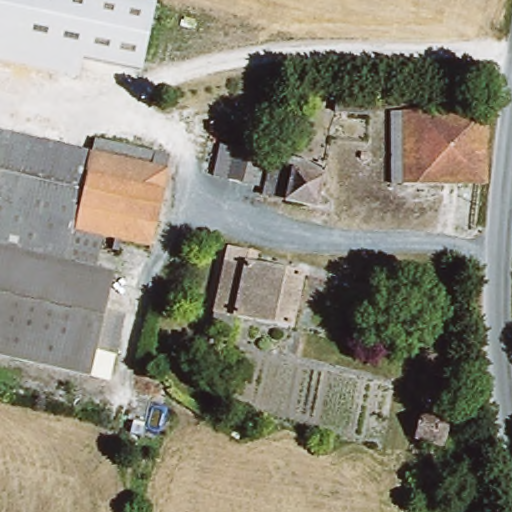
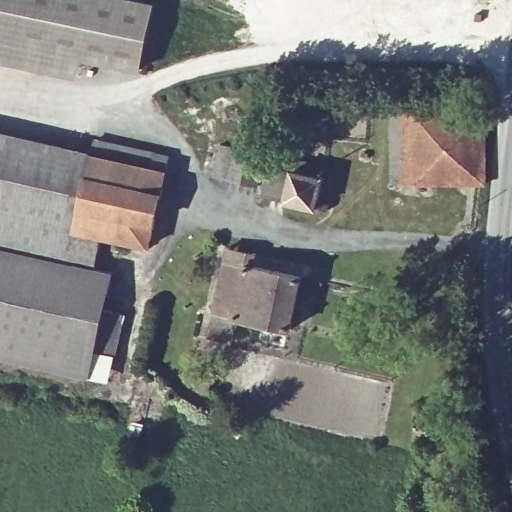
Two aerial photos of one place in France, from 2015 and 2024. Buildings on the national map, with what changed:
unchanged [(138,84),(0,58),(0,0),(154,0),(138,84)]
unchanged [(359,120),(328,111),(333,90),(365,98),(359,120)]
unchanged [(496,175),(489,175),(415,185),(405,118),(489,110),(496,175)]
unchanged [(405,118),(415,185),(399,187),(389,120),(405,118)]
unchanged [(96,136),(174,155),(170,169),(153,249),(101,237),(96,268),(115,271),(106,309),(126,313),(111,382),(91,377),(0,357),(0,131),(93,152),(96,136)]
unchanged [(252,189),(208,173),(217,144),(252,153),(263,157),(255,180),(252,189)]
unchanged [(277,171),(277,155),(304,156),(303,174),(310,175),(307,207),(267,203),(268,171),(277,171)]
unchanged [(289,322),(236,312),(231,336),(212,333),(228,257),(299,272),(289,322)]
unchanged [(415,439),(423,412),(439,417),(454,422),(450,432),(442,449),(435,448),(415,439)]

